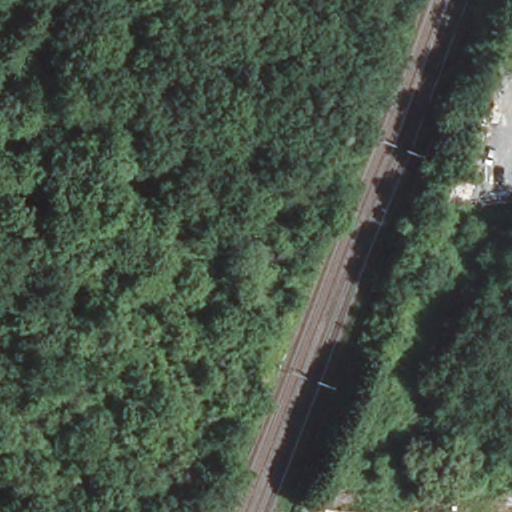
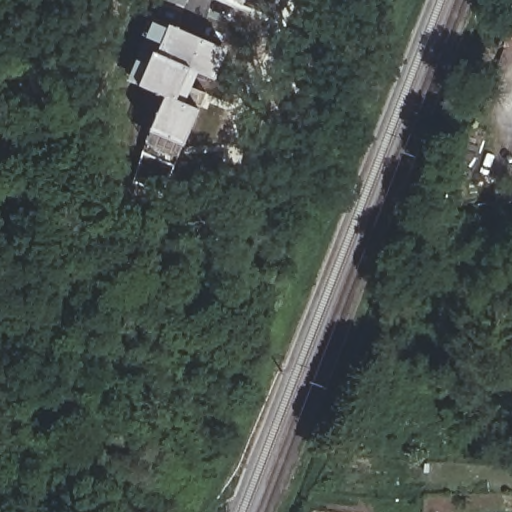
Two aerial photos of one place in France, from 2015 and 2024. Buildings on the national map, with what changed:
new [(235,0),(242,0),(241,2),(235,0)]
unchanged [(511,45),(508,21),(512,20),(512,45),(511,45)]
new [(134,182),(143,154),(150,127),(163,97),(138,86),(138,84),(128,79),(137,59),(148,62),(153,51),(156,52),(160,42),(145,36),(152,22),(166,27),(169,24),(226,50),(213,80),(198,73),(191,87),(204,94),(197,108),(182,144),(172,164),(163,192),(134,182)]

